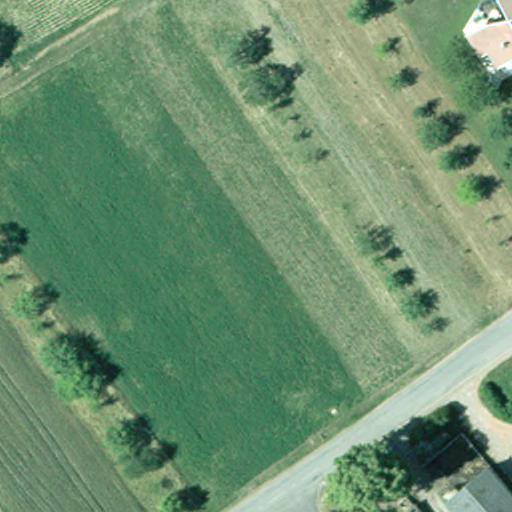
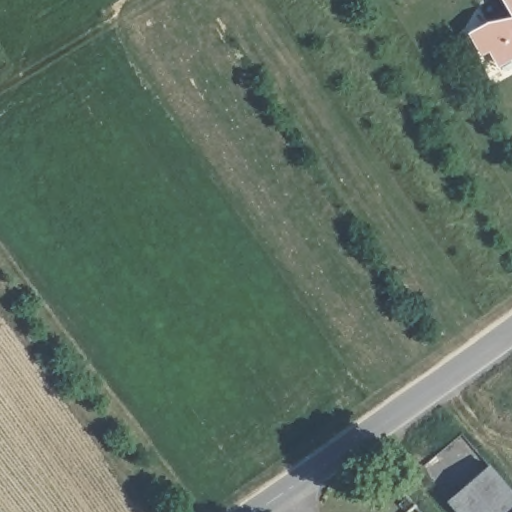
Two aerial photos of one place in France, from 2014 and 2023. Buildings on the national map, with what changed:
unchanged [(512,0),(512,60),(510,56),(493,66),(485,50),(477,54),(465,33),(483,21),(495,22),(505,17),(496,0),(512,0)]
unchanged [(485,459),(512,491),(512,512),(456,512),(442,496),(485,459)]

